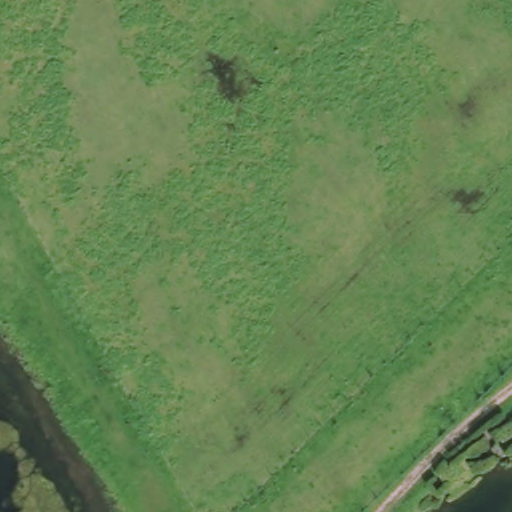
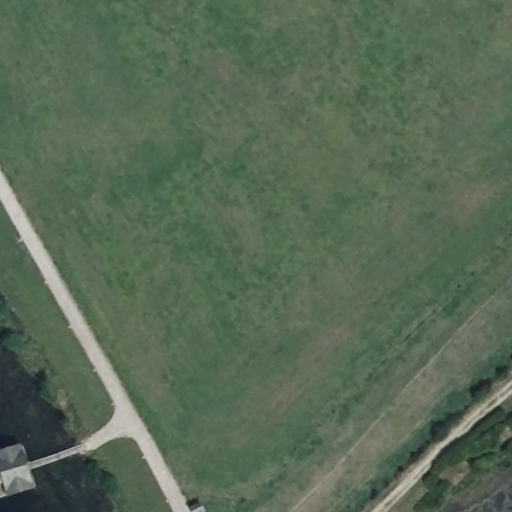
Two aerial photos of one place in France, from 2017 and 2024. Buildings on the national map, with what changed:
new [(36,493),(9,499),(6,487),(0,489),(0,455),(23,449),(36,493)]

